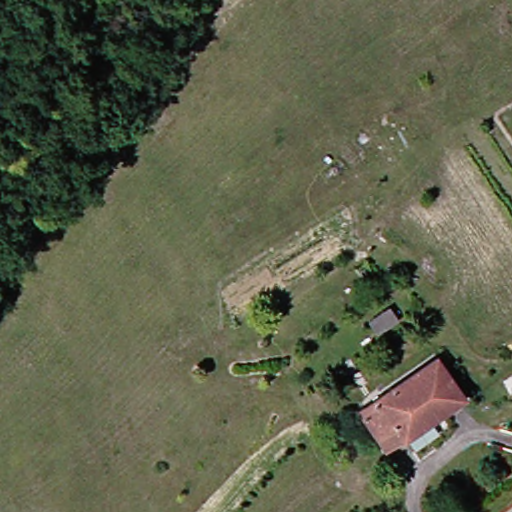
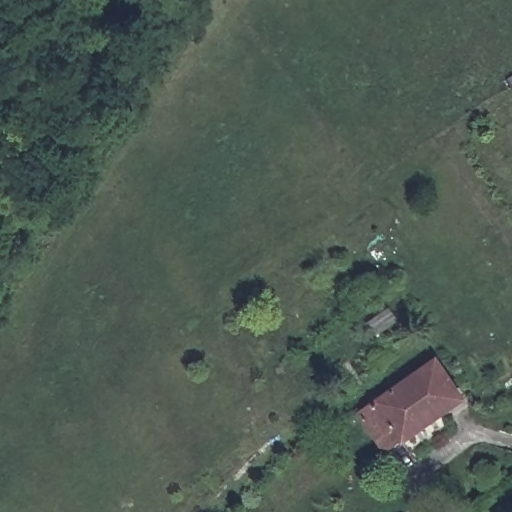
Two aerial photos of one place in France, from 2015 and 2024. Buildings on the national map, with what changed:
unchanged [(385,455),(357,415),(432,363),(459,402),(385,455)]

